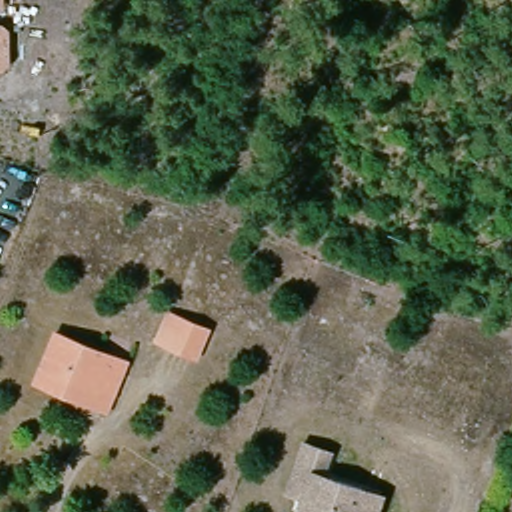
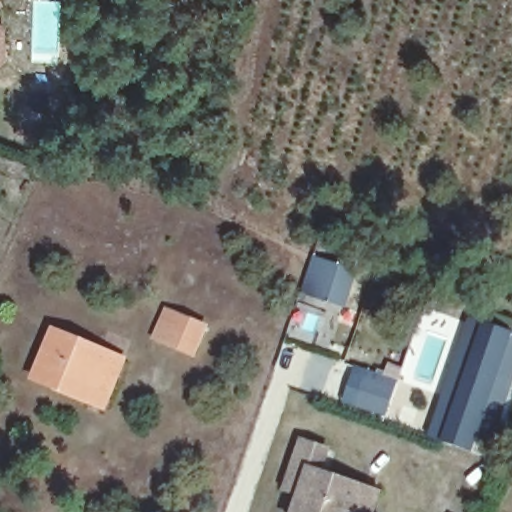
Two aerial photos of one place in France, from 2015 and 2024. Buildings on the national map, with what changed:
unchanged [(3,9),(0,9),(0,0),(3,0),(3,9)]
unchanged [(2,21),(9,27),(10,60),(2,70),(0,70),(0,21),(2,21)]
new [(301,296),(314,257),(359,271),(348,308),(301,296)]
unchanged [(196,358),(165,346),(152,341),(158,311),(174,317),(206,328),(196,358)]
new [(444,442),(429,437),(469,320),(484,324),(512,332),(512,383),(487,453),(474,452),(444,442)]
unchanged [(33,379),(51,328),(122,354),(106,405),(88,398),(52,385),(33,379)]
new [(343,401),(355,367),(399,381),(387,417),(343,401)]
unchanged [(288,483),(304,435),(329,442),(322,467),(363,481),(352,512),(294,512),(302,489),(288,483)]
unchanged [(381,487),(372,512),(352,512),(363,481),(381,487)]

